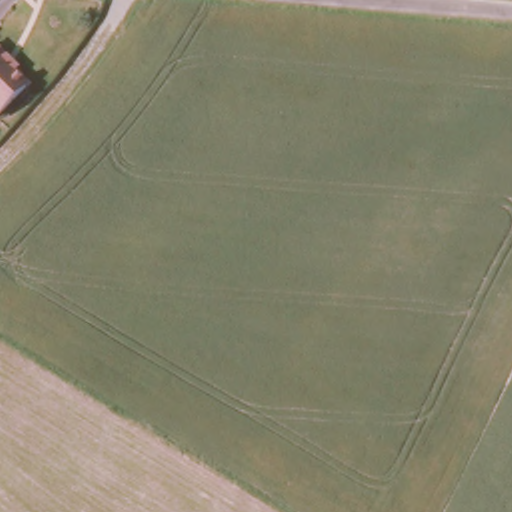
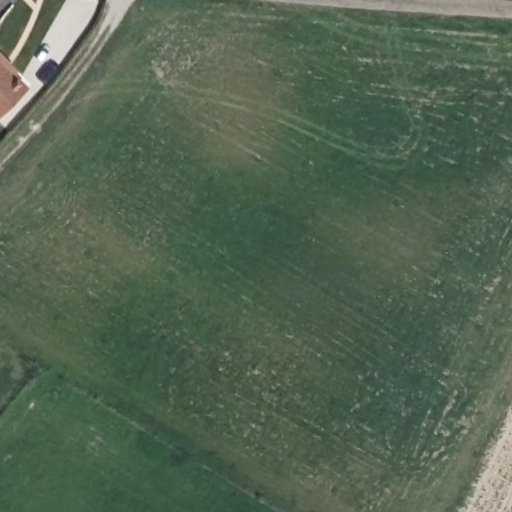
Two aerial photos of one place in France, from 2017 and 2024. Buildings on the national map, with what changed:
unchanged [(5,63),(2,66),(23,92),(0,112),(0,57),(5,63)]

